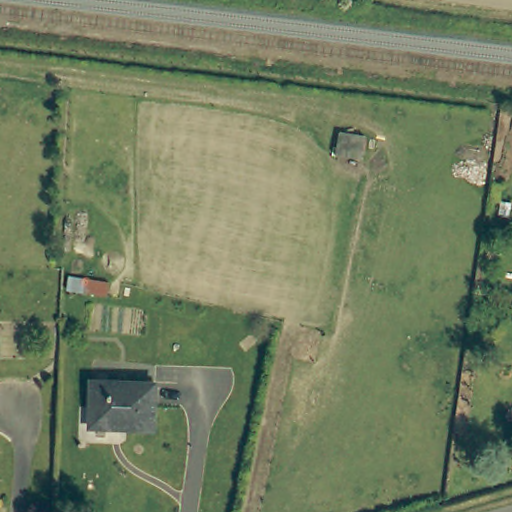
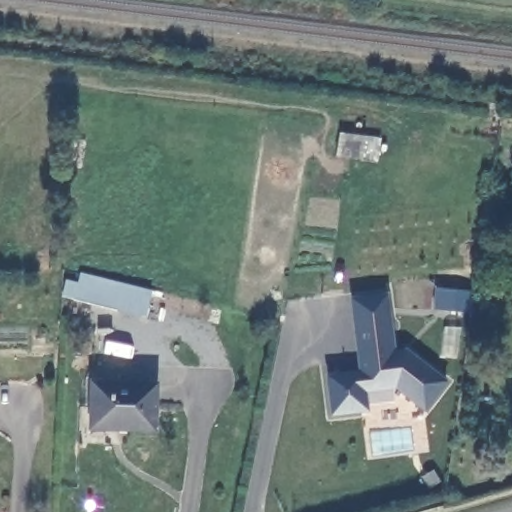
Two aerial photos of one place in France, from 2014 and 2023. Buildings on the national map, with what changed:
new [(424,412),(391,387),(392,404),(369,407),(370,410),(329,416),(323,373),(356,369),(348,297),(387,293),(393,348),(405,347),(448,381),(424,412)]
unchanged [(117,430),(117,426),(92,426),(93,383),(154,383),(152,431),(117,430)]

